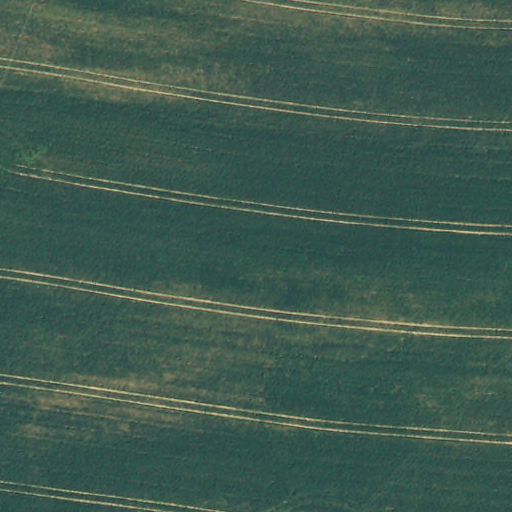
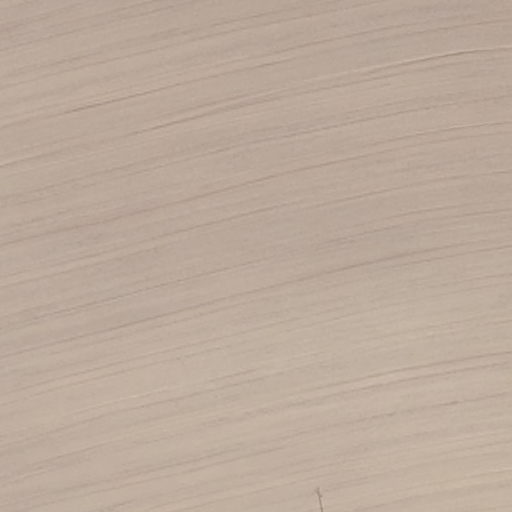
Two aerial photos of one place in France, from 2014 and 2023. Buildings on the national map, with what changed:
[]

